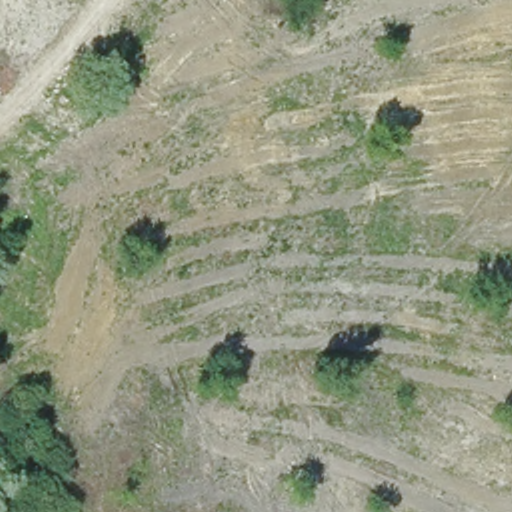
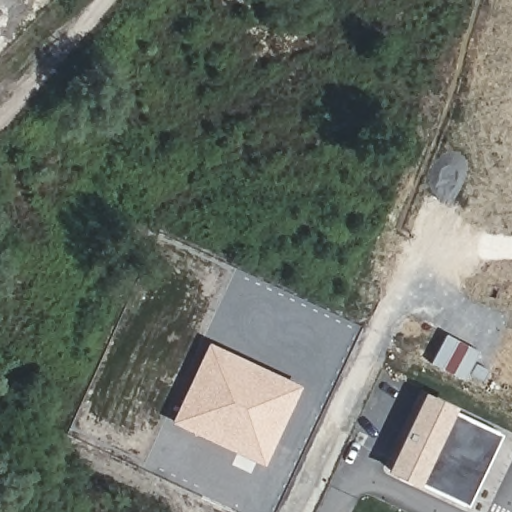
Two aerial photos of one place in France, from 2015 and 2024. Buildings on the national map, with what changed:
new [(208,343),(300,385),(264,465),(172,422),(208,343)]
new [(499,432),(464,505),(414,482),(412,487),(379,473),(415,394),(499,432)]

